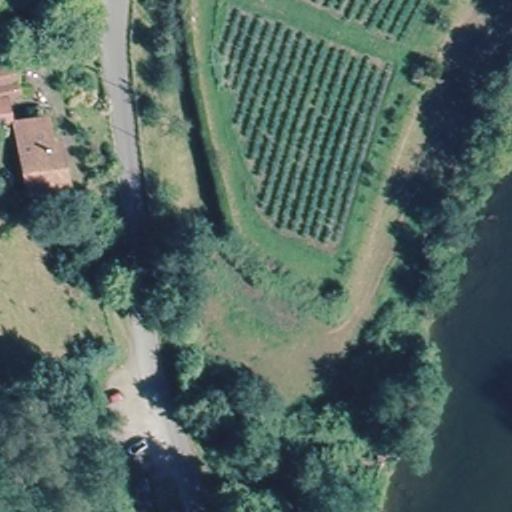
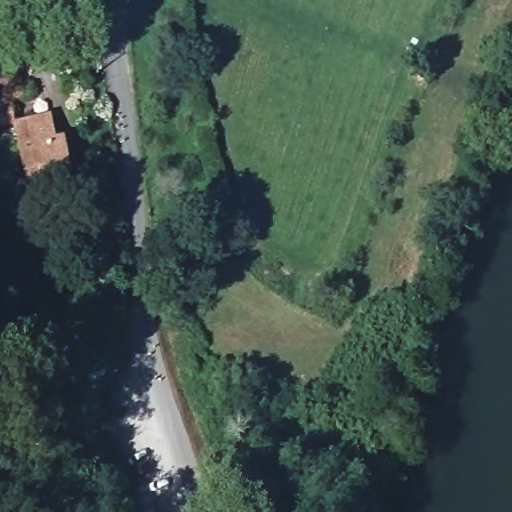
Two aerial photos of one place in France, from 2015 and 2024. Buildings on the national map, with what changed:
unchanged [(19,94),(0,97),(0,68),(14,65),(19,94)]
unchanged [(32,204),(19,144),(14,116),(49,108),(52,135),(65,134),(73,195),(32,204)]

